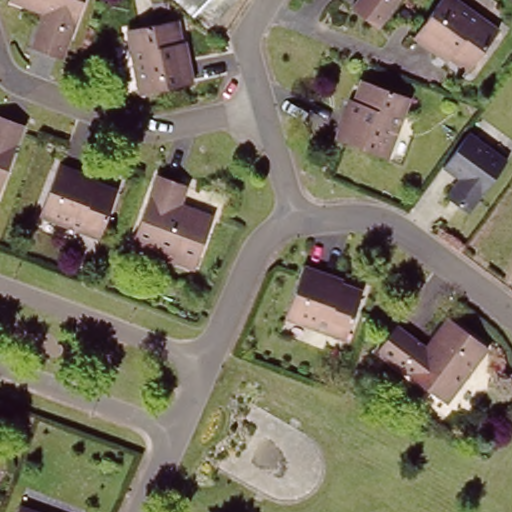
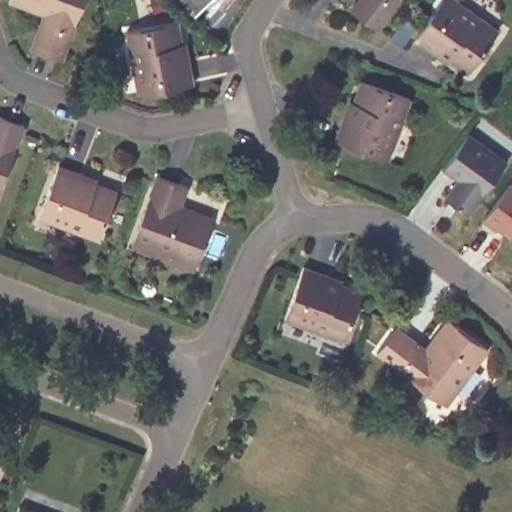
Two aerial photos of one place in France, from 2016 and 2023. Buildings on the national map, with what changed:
unchanged [(65,60),(36,48),(50,14),(15,0),(89,0),(65,60)]
unchanged [(215,34),(178,0),(246,0),(215,34)]
unchanged [(373,34),(348,15),(359,0),(399,0),(373,34)]
unchanged [(435,54),(411,36),(439,0),(454,0),(496,33),(465,73),(449,60),(446,63),(435,54)]
unchanged [(138,94),(130,31),(178,25),(181,44),(185,44),(188,61),(191,86),(138,94)]
unchanged [(351,109),(356,98),(358,99),(365,81),(412,99),(390,157),(340,138),(351,109)]
unchanged [(23,130),(0,190),(0,120),(23,130)]
unchanged [(470,135),(507,162),(470,212),(446,195),(460,177),(446,167),(470,135)]
unchanged [(85,185),(96,189),(115,196),(98,244),(40,222),(60,172),(85,182),(85,185)]
unchanged [(157,261),(125,249),(150,180),(180,190),(173,211),(205,224),(190,266),(187,272),(157,261)]
new [(495,230),(482,219),(510,182),(512,183),(512,237),(499,227),(495,230)]
unchanged [(343,342),(282,321),(301,269),(326,278),(340,283),(339,287),(359,294),(343,342)]
unchanged [(372,356),(392,331),(420,353),(445,322),(485,351),(441,408),(372,356)]
unchanged [(31,512),(22,512),(23,509),(31,512)]

